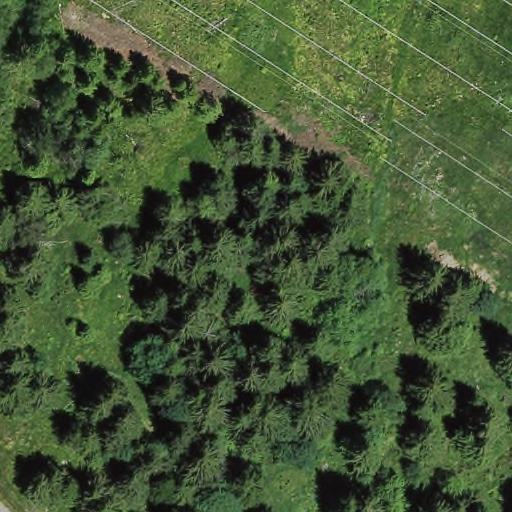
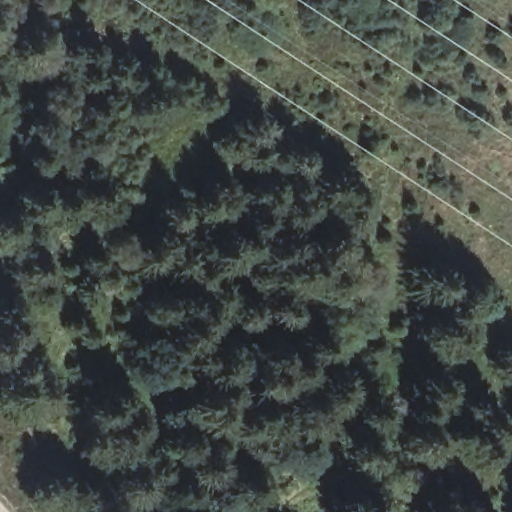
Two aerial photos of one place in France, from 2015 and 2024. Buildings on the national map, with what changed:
[]

